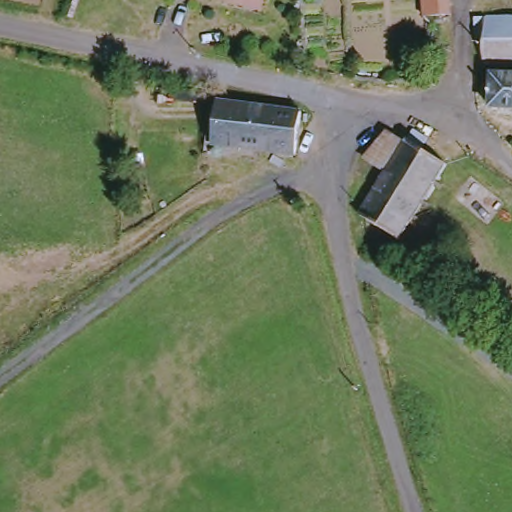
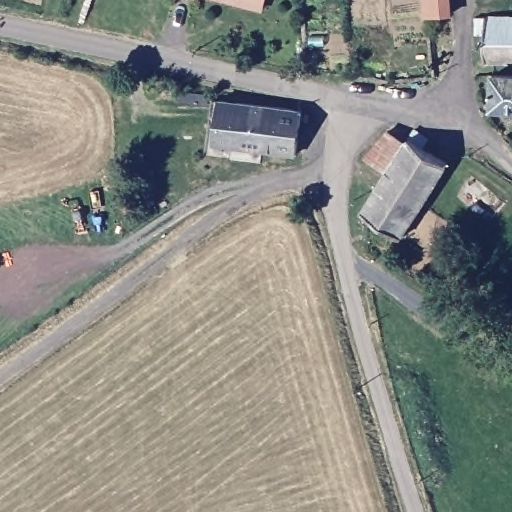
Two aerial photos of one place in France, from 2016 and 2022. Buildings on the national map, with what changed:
unchanged [(230,0),(274,0),(270,11),(230,0)]
unchanged [(425,21),(423,0),(452,0),(454,19),(425,21)]
unchanged [(490,36),(482,36),(481,19),(512,18),(512,66),(488,66),(490,36)]
unchanged [(500,78),(512,78),(512,111),(498,110),(500,78)]
unchanged [(297,156),(215,146),(218,103),(302,114),(297,156)]
unchanged [(405,242),(367,216),(393,174),(370,160),(393,135),(410,145),(418,133),(433,141),(428,151),(452,166),(405,242)]

